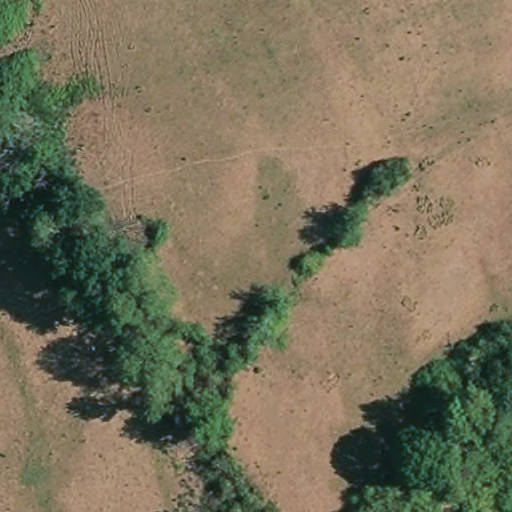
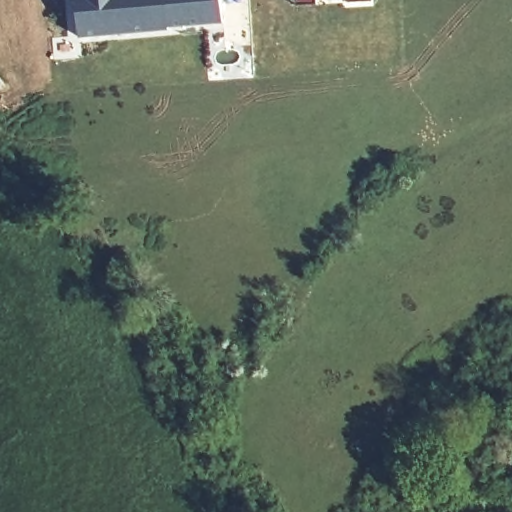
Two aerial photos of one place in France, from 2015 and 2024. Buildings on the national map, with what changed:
new [(167,26),(167,29),(78,37),(76,0),(221,0),(222,22),(167,26)]
new [(297,5),(296,0),(316,0),(317,2),(297,5)]
new [(349,0),(372,0),(349,2),(349,0)]

